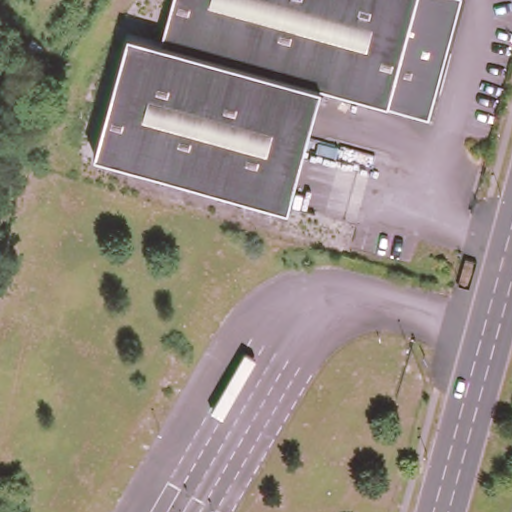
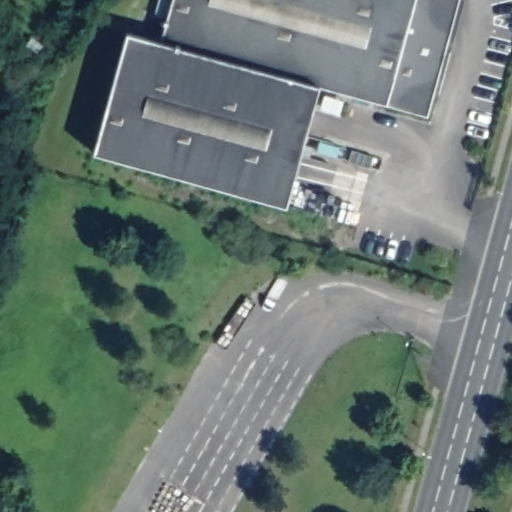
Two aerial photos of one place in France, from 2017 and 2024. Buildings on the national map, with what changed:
unchanged [(314,85),(280,204),(87,151),(121,32),(155,41),(166,0),(454,0),(422,115),(314,85)]

